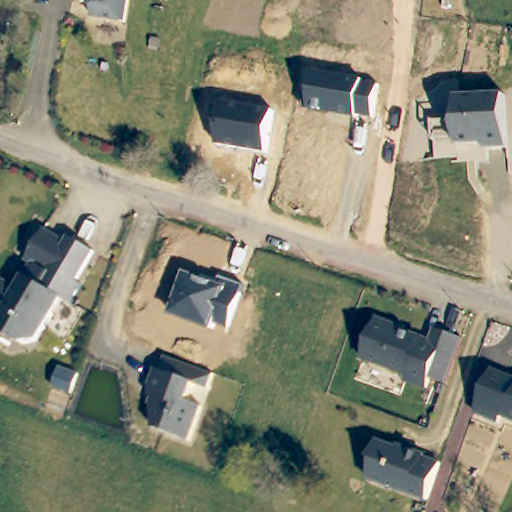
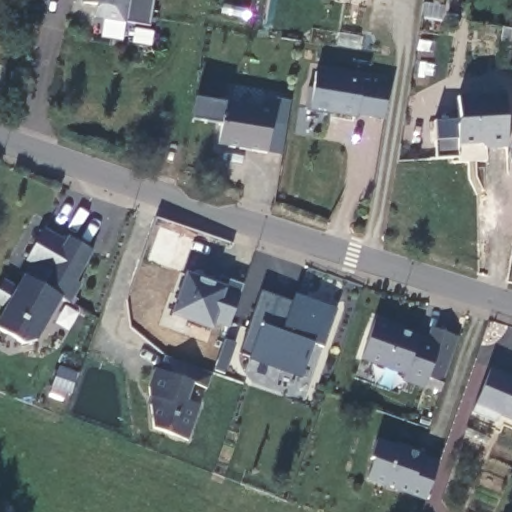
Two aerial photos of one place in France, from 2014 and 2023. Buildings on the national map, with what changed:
unchanged [(128,16),(103,14),(103,0),(130,0),(128,16)]
unchanged [(363,77),(361,82),(378,85),(374,116),(357,114),(356,117),(306,108),(312,69),(363,77)]
unchanged [(505,95),(510,146),(484,148),(482,145),(460,146),(458,96),(505,95)]
unchanged [(275,110),(267,152),(214,143),(222,101),(275,110)]
unchanged [(73,235),(97,249),(80,279),(85,283),(74,302),(65,296),(41,338),(28,343),(0,328),(0,325),(10,307),(0,301),(0,291),(7,279),(25,289),(32,277),(28,275),(36,262),(31,258),(48,228),(70,240),(73,235)]
unchanged [(217,284),(221,276),(244,284),(228,327),(215,322),(213,329),(170,315),(186,272),(217,284)]
new [(293,301),(295,294),(338,309),(325,347),(313,343),(301,379),(248,359),(250,356),(240,352),(263,292),(293,301)]
unchanged [(381,311),(399,317),(398,319),(447,335),(433,378),(411,371),(412,366),(368,352),(381,311)]
unchanged [(172,352),(220,368),(214,384),(200,379),(194,396),(209,401),(197,436),(161,424),(158,401),(161,393),(157,392),(157,381),(162,365),(167,366),(172,352)]
unchanged [(512,364),(512,406),(510,405),(508,411),(483,403),(498,359),(512,364)]
unchanged [(66,367),(85,373),(79,393),(60,386),(66,367)]
unchanged [(436,492),(376,472),(383,453),(379,452),(385,434),(414,443),(415,441),(432,447),(431,449),(448,454),(436,492)]

